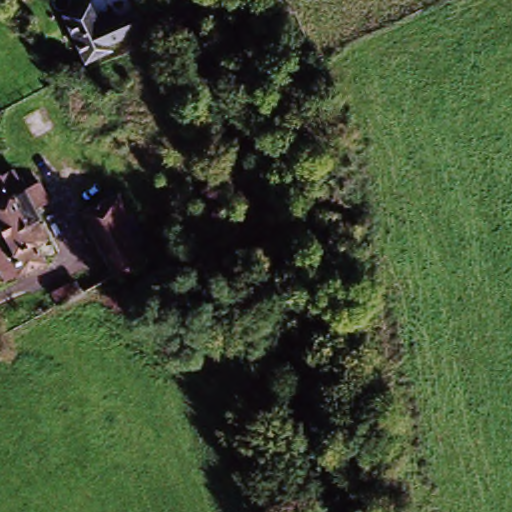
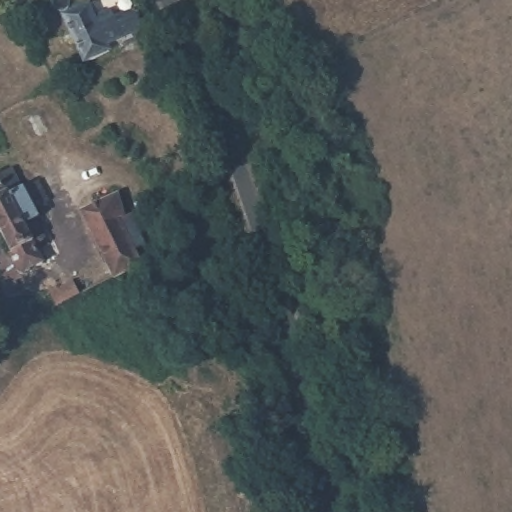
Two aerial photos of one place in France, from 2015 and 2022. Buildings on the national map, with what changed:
unchanged [(79,65),(59,19),(83,9),(91,28),(126,12),(134,30),(99,45),(103,54),(79,65)]
unchanged [(30,250),(38,265),(16,276),(12,274),(3,257),(6,255),(0,244),(0,176),(8,171),(18,192),(34,185),(44,205),(29,211),(34,222),(30,224),(41,244),(30,250)]
unchanged [(110,279),(103,266),(100,267),(84,236),(88,235),(78,215),(110,198),(120,218),(111,222),(113,225),(128,252),(136,266),(110,279)]
unchanged [(72,285),(78,296),(56,307),(50,296),(72,285)]
unchanged [(10,310),(16,322),(3,329),(0,322),(0,315),(10,310)]

